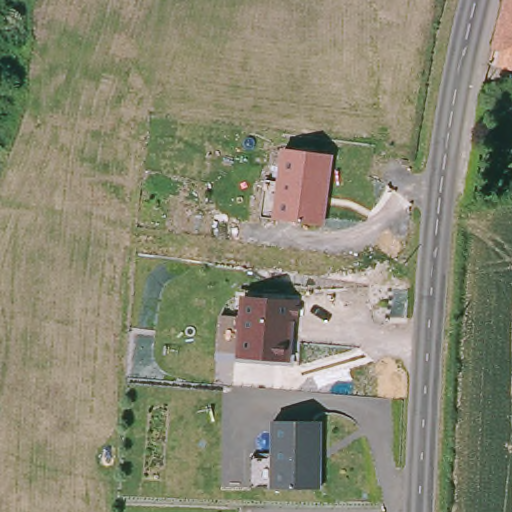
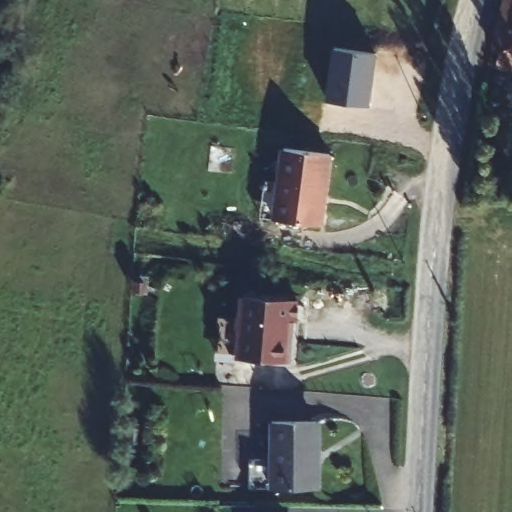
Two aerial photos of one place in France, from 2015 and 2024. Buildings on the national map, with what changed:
unchanged [(507,0),(512,0),(512,66),(490,61),(507,0)]
new [(333,47),(377,54),(370,107),(326,100),(333,47)]
unchanged [(290,148),(335,156),(322,225),(277,217),(263,214),(270,177),(285,180),(290,148)]
unchanged [(295,304),(289,363),(238,358),(243,297),(295,304)]
unchanged [(247,453),(269,454),(270,416),(312,417),(311,461),(315,466),(315,484),(268,484),(246,483),(247,453)]

